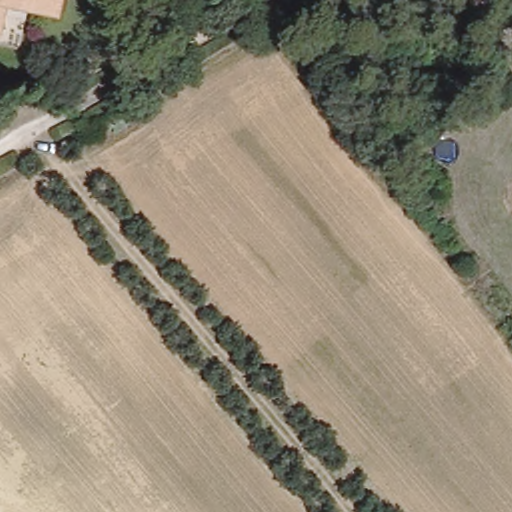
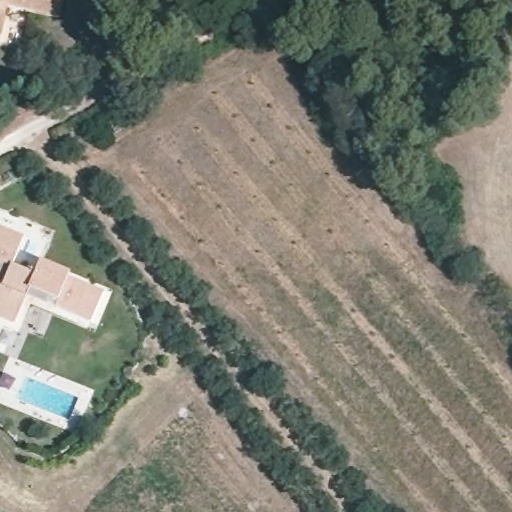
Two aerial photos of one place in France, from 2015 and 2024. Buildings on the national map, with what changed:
unchanged [(10,7),(5,30),(0,29),(0,0),(65,0),(61,17),(10,7)]
new [(14,265),(35,273),(42,259),(72,273),(70,277),(104,292),(89,329),(32,305),(20,333),(3,327),(0,335),(0,225),(26,236),(14,265)]

